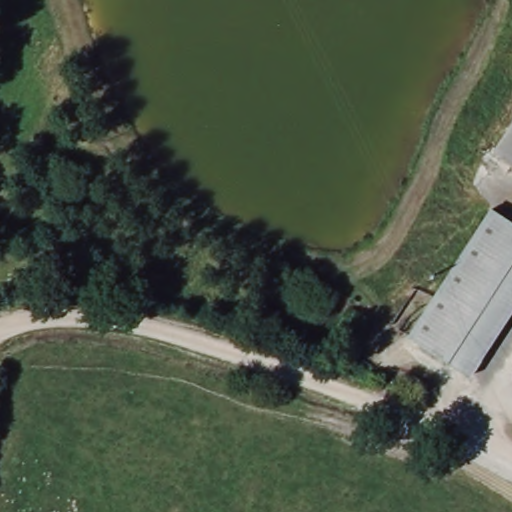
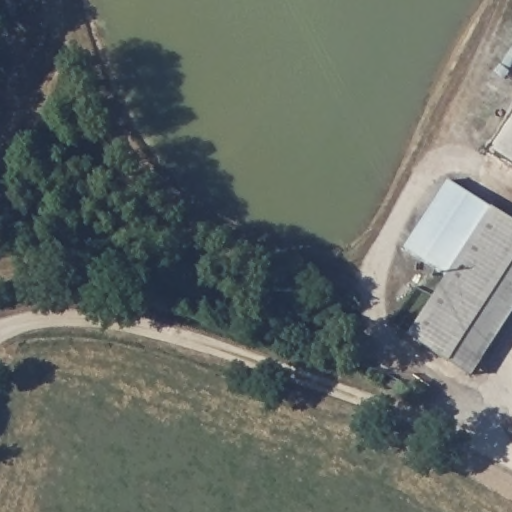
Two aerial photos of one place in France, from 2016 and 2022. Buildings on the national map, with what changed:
unchanged [(496,146),(512,121),(512,157),(496,146)]
new [(404,248),(446,180),(492,209),(447,277),(404,248)]
unchanged [(492,209),(512,222),(512,311),(470,376),(409,335),(492,209)]

